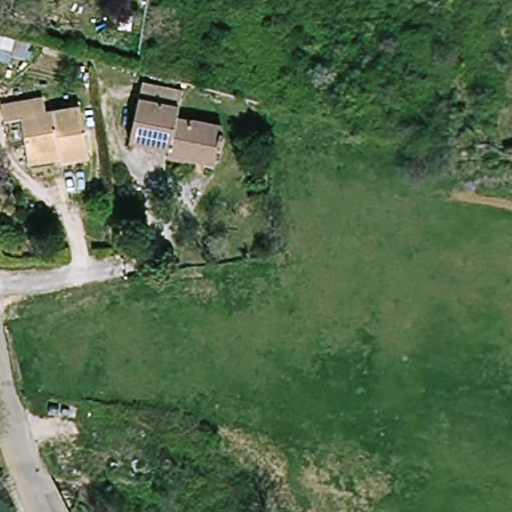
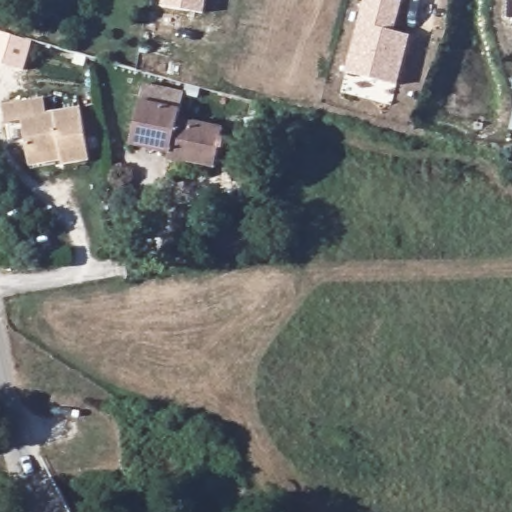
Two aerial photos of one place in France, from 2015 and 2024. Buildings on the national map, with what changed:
new [(160,6),(161,0),(207,0),(205,14),(160,6)]
new [(395,33),(410,36),(398,86),(346,73),(365,0),(399,0),(403,1),(395,33)]
new [(508,0),(512,0),(512,21),(507,20),(508,0)]
unchanged [(191,168),(167,162),(169,154),(128,144),(143,80),(185,90),(178,118),(225,129),(222,139),(227,140),(225,150),(220,149),(218,159),(215,173),(191,168)]
unchanged [(0,103),(50,94),(52,115),(81,111),(90,157),(60,161),(59,149),(25,152),(20,124),(3,125),(0,103)]

